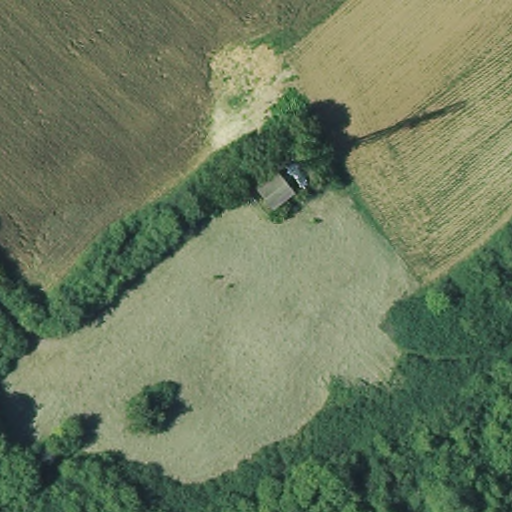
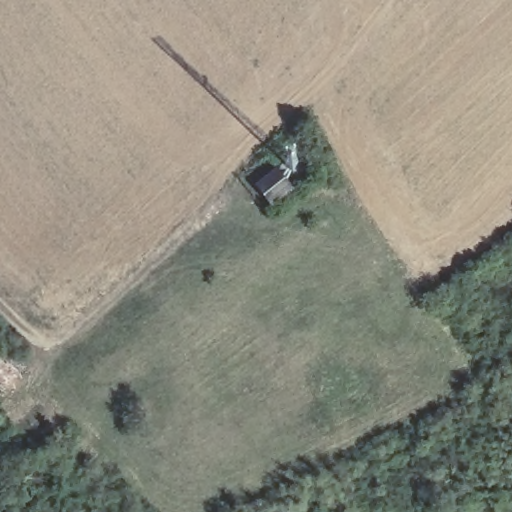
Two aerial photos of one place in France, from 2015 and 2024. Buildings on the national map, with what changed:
unchanged [(293,190),(272,211),(256,189),(275,174),(293,190)]

